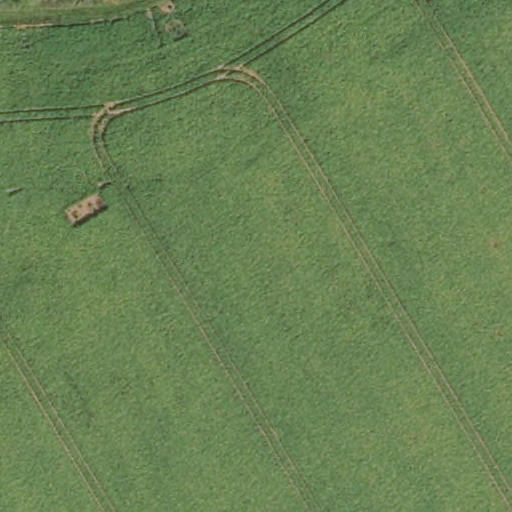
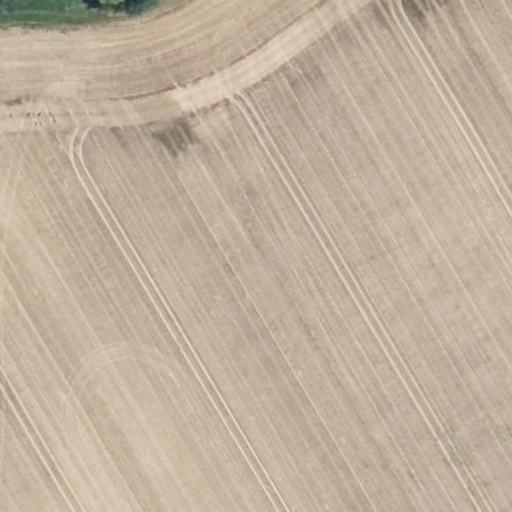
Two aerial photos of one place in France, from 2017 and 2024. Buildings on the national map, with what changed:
[]

